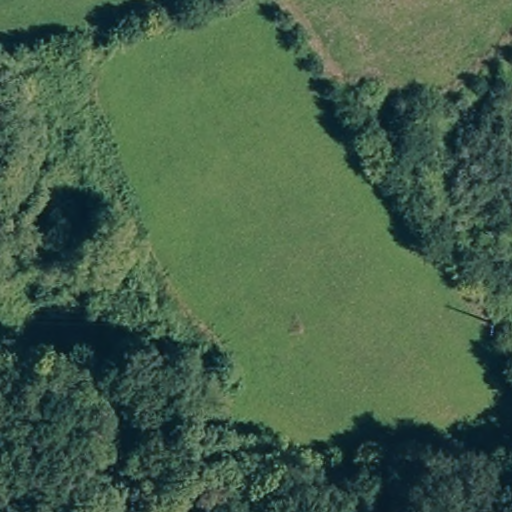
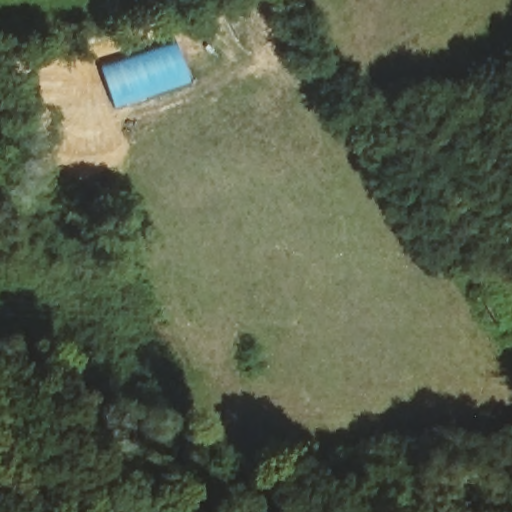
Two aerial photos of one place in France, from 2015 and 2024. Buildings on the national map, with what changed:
new [(175,43),(188,84),(111,110),(99,67),(175,43)]

